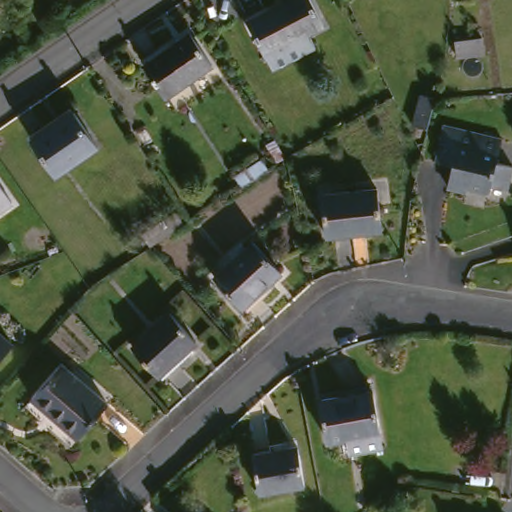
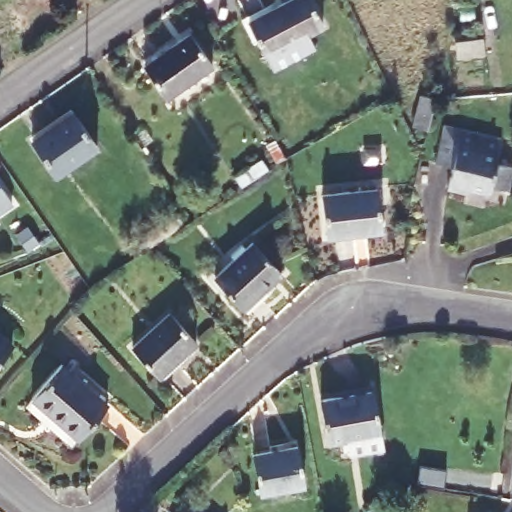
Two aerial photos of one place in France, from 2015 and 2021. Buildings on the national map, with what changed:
unchanged [(307,0),(317,29),(302,35),(308,50),(263,69),(256,54),(243,21),(292,0),(307,0)]
unchanged [(487,32),(489,52),(462,58),(459,39),(487,32)]
unchanged [(186,45),(205,76),(164,101),(145,70),(186,45)]
unchanged [(436,108),(430,137),(412,133),(418,104),(436,108)]
unchanged [(94,154),(55,177),(34,143),(73,119),(94,154)]
unchanged [(498,165),(512,167),(512,201),(483,197),(484,191),(431,181),(440,137),(501,147),(498,165)]
unchanged [(368,195),(372,237),(319,242),(314,200),(368,195)]
unchanged [(5,210),(0,213),(0,204),(5,210)]
unchanged [(278,278),(238,311),(214,281),(255,249),(278,278)]
unchanged [(205,340),(168,376),(141,347),(178,311),(205,340)]
unchanged [(6,349),(0,357),(0,344),(6,349)]
unchanged [(102,412),(78,440),(34,401),(59,373),(102,412)]
unchanged [(369,399),(373,436),(322,442),(318,405),(369,399)]
unchanged [(287,452),(295,490),(260,498),(251,461),(287,452)]
unchanged [(352,507),(381,502),(382,512),(353,512),(352,507)]

